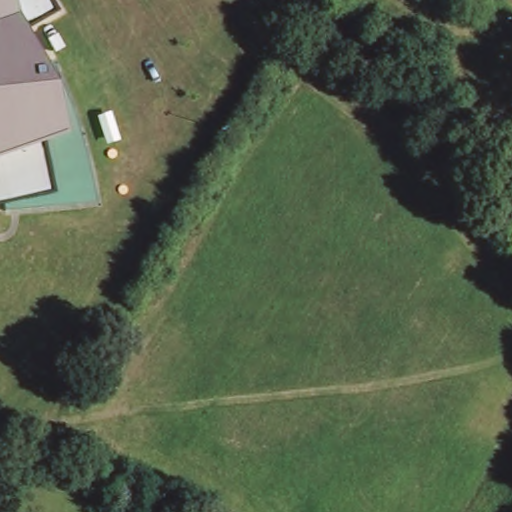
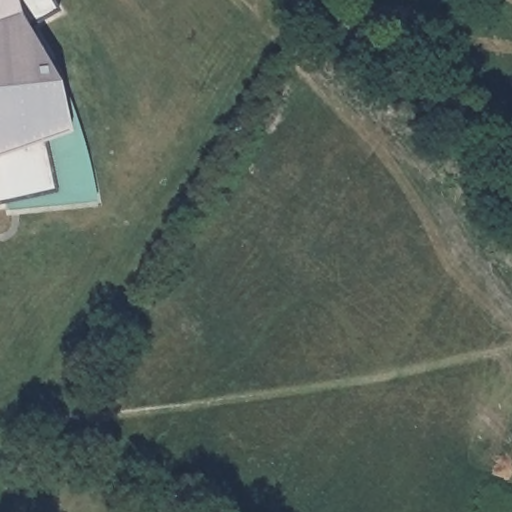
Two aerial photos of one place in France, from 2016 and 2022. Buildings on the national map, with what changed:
unchanged [(55,10),(42,18),(24,25),(58,80),(69,131),(79,128),(97,201),(5,211),(4,202),(0,203),(0,0),(49,0),(55,10)]

